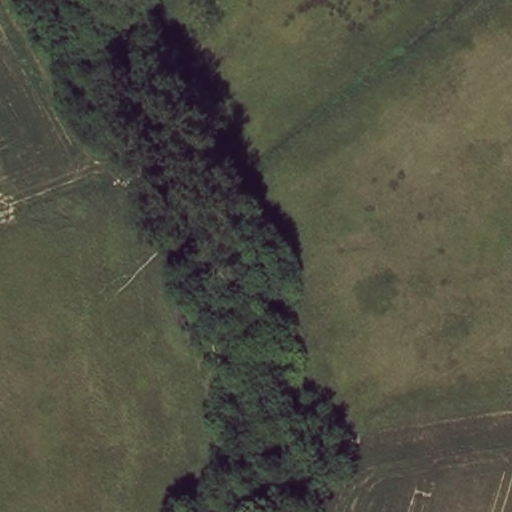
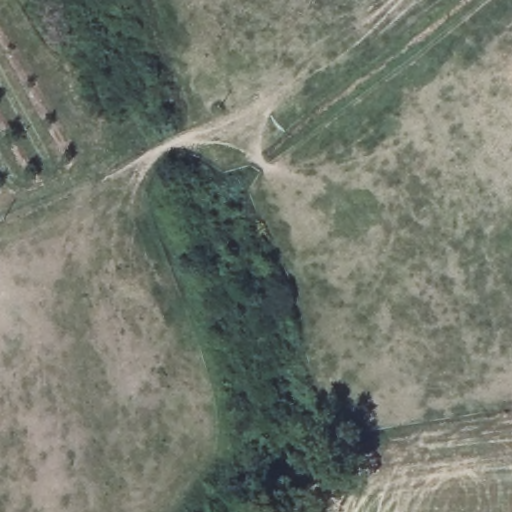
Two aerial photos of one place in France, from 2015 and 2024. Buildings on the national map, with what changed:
[]

